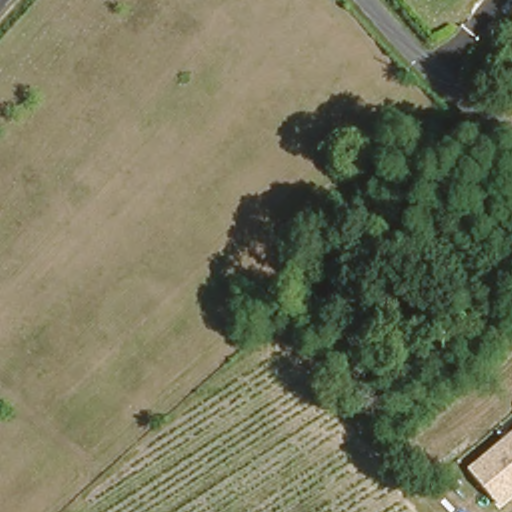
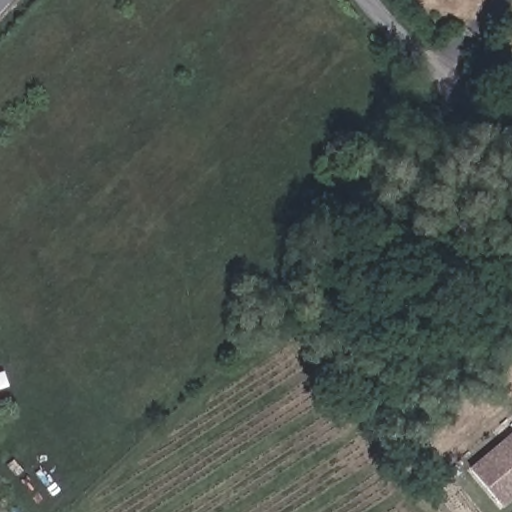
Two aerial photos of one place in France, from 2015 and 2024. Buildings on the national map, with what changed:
unchanged [(503,508),(469,468),(512,432),(512,500),(503,508)]

